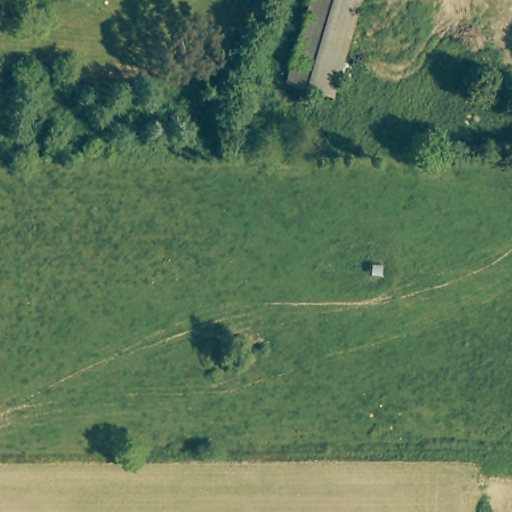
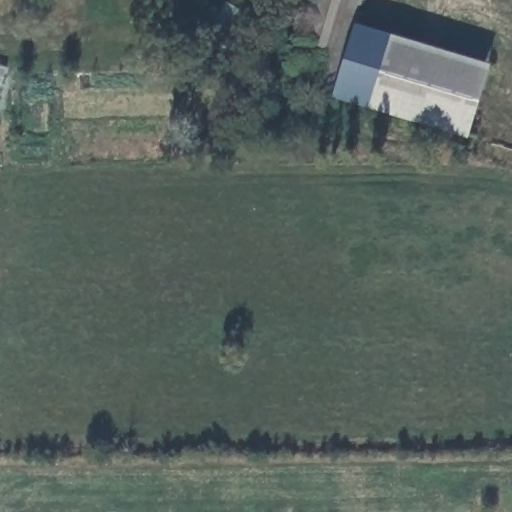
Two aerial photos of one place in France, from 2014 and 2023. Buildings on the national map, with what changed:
unchanged [(283,83),(309,0),(360,0),(329,98),(283,83)]
new [(491,64),(469,139),(329,98),(352,24),(491,64)]

